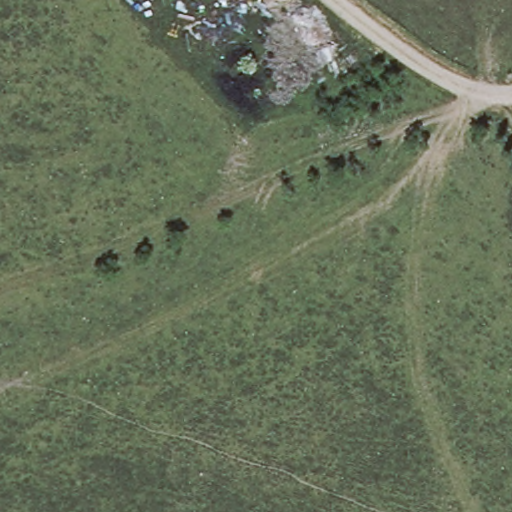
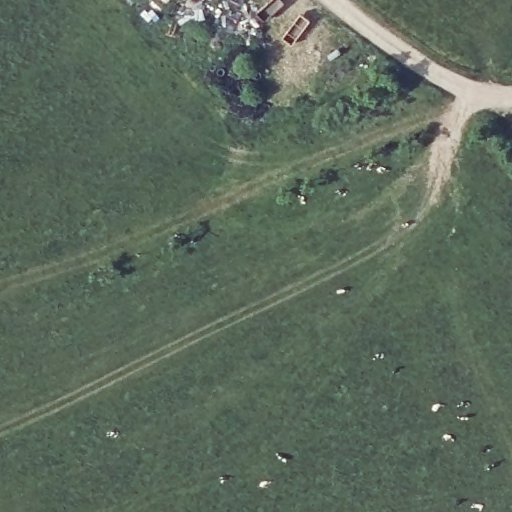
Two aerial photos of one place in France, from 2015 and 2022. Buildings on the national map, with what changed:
[]

